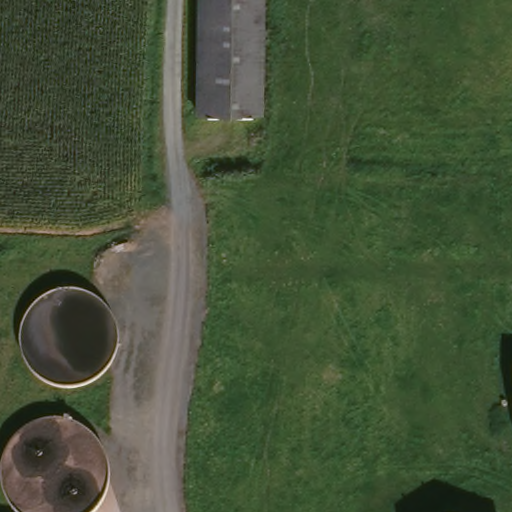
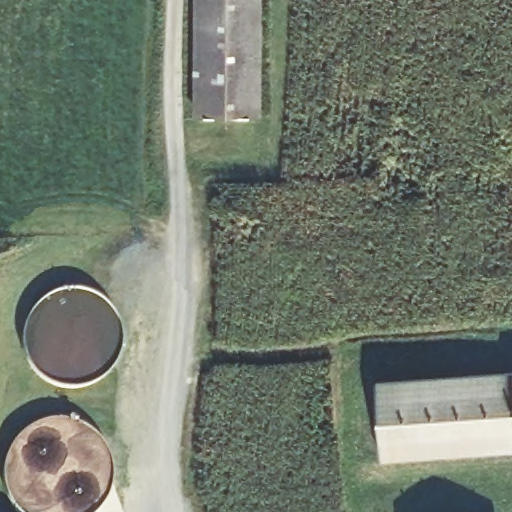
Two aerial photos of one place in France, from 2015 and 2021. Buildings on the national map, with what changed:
unchanged [(269,112),(201,110),(202,0),(270,0),(269,112)]
new [(384,458),(380,378),(512,369),(512,447),(384,458)]

